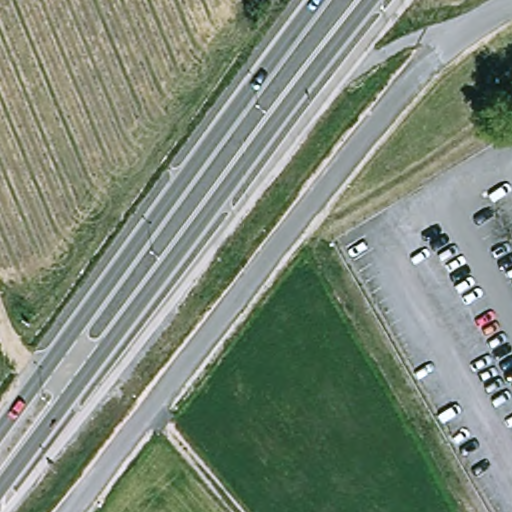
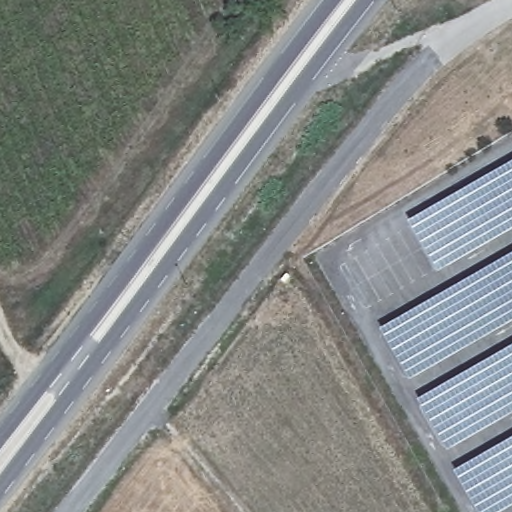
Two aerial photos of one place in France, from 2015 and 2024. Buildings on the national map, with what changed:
new [(512,158),(512,228),(441,270),(411,220),(512,158)]
new [(512,256),(512,325),(417,382),(386,331),(512,256)]
new [(512,347),(512,414),(453,450),(423,400),(512,347)]
new [(509,512),(485,512),(461,472),(512,441),(512,510),(509,512)]

